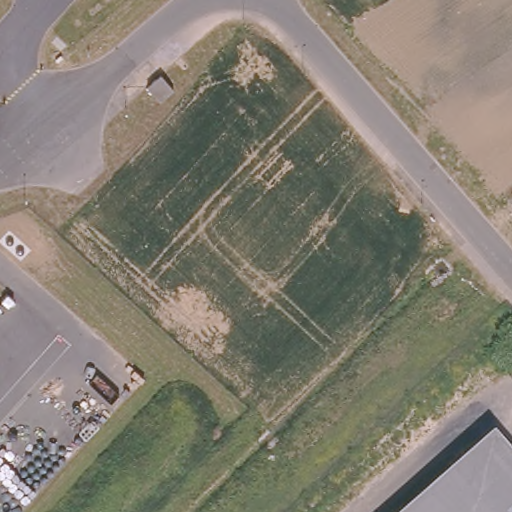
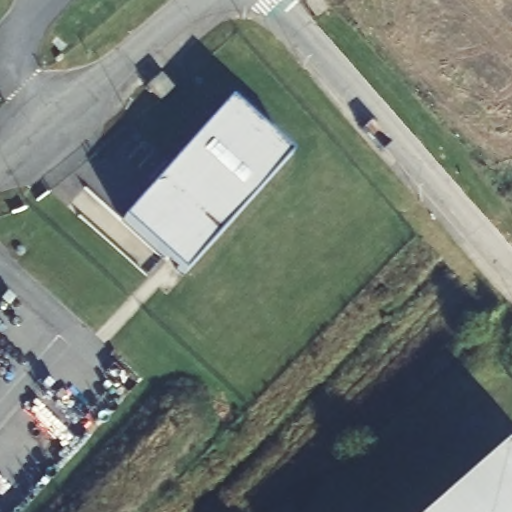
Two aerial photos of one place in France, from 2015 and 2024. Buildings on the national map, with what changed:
unchanged [(170,90),(158,101),(145,88),(158,77),(170,90)]
new [(184,274),(123,221),(229,103),(287,156),(184,274)]
unchanged [(500,454),(512,468),(512,512),(433,512),(500,454)]

